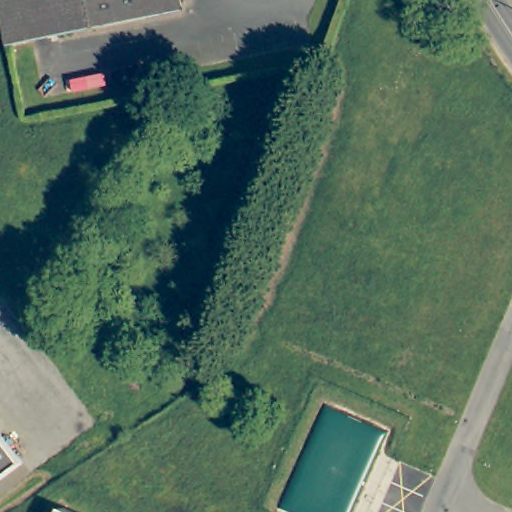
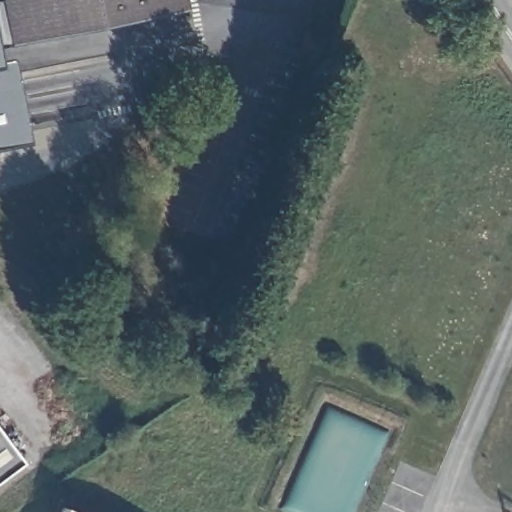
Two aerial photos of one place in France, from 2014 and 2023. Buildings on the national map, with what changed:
new [(4,0),(12,41),(0,44),(0,1),(4,0)]
unchanged [(183,12),(13,46),(4,0),(189,0),(189,1),(183,12)]
new [(10,58),(28,143),(0,148),(0,60),(10,58)]
unchanged [(23,458),(0,475),(0,427),(23,458)]
unchanged [(62,512),(65,505),(81,512),(62,512)]

